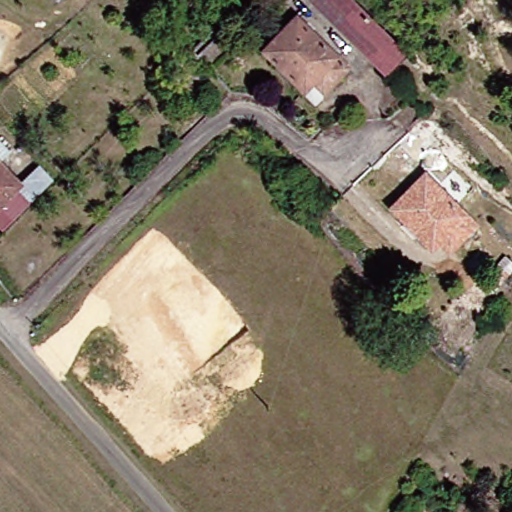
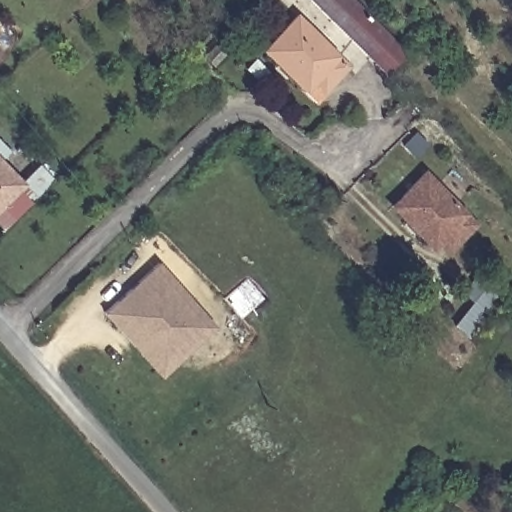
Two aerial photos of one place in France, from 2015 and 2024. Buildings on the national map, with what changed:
unchanged [(394,78),(315,0),(358,0),(415,53),(394,78)]
unchanged [(328,96),(317,85),(312,91),(272,49),(302,18),(354,70),(328,96)]
unchanged [(17,152),(7,162),(29,184),(0,211),(0,136),(17,152)]
unchanged [(67,188),(45,209),(27,189),(47,169),(67,188)]
unchanged [(484,227),(459,251),(449,242),(441,250),(401,206),(434,174),(484,227)]
new [(217,327),(161,378),(103,312),(160,261),(217,327)]
new [(476,276),(487,286),(504,268),(512,275),(512,281),(466,336),(452,323),(472,301),(462,292),(476,276)]

